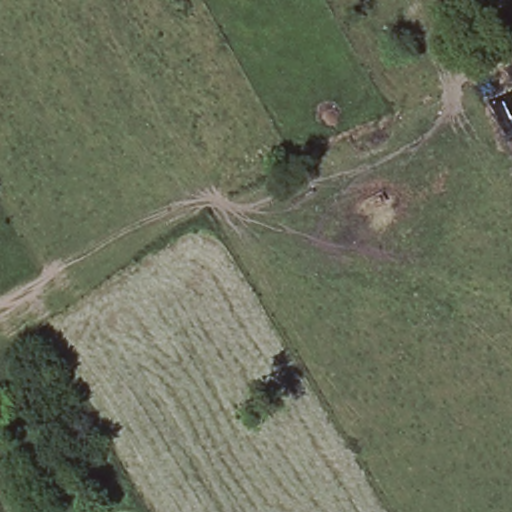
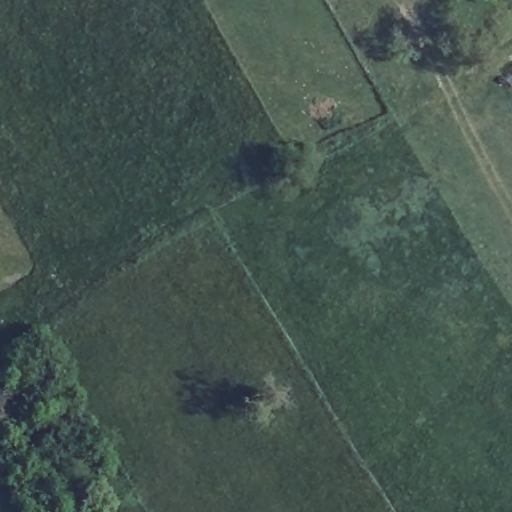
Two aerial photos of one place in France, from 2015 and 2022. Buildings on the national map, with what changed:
unchanged [(511,95),(512,95),(512,98),(511,95)]

